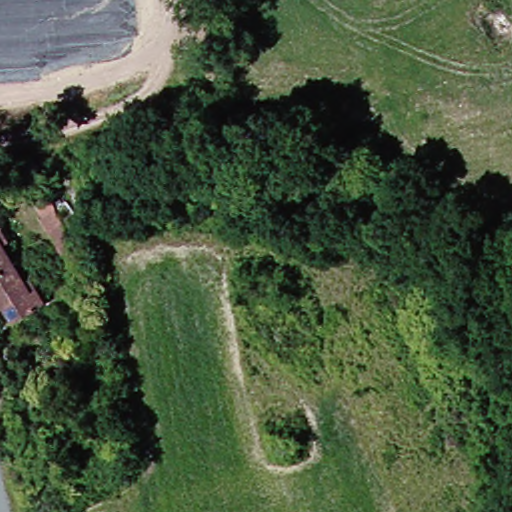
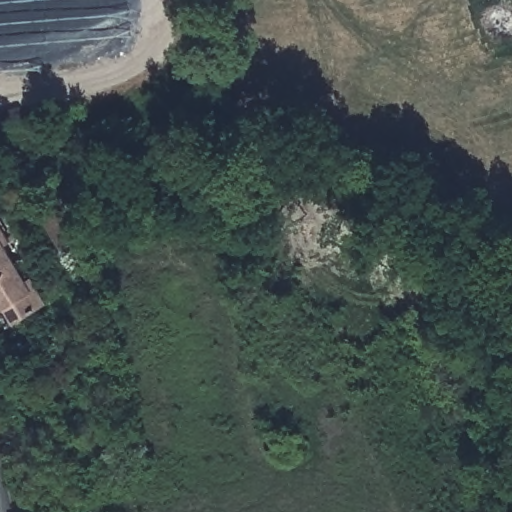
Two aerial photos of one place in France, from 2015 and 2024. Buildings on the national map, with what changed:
unchanged [(5,241),(0,246),(0,233),(5,241)]
unchanged [(11,265),(0,271),(0,247),(11,265)]
unchanged [(11,265),(23,285),(28,281),(41,305),(11,322),(2,307),(0,309),(0,271),(11,265)]

